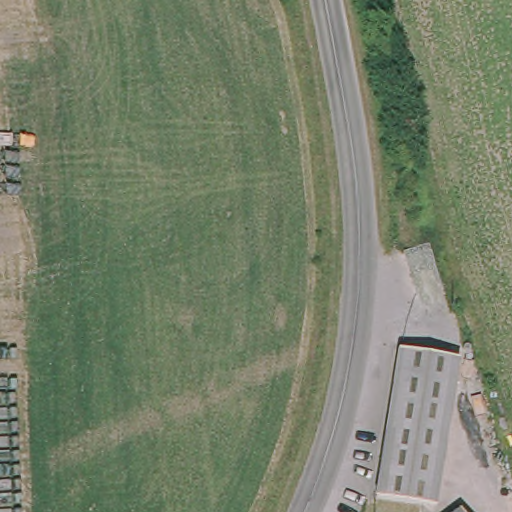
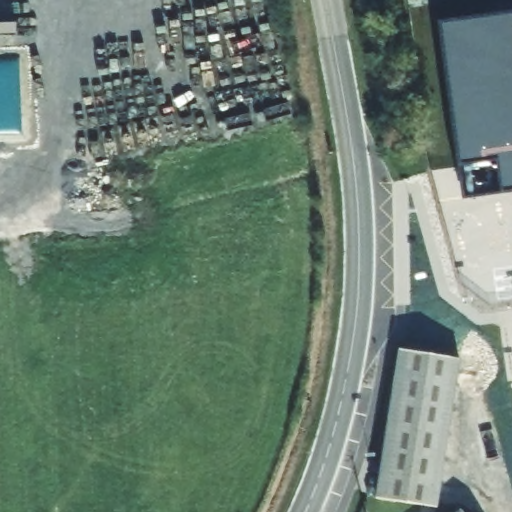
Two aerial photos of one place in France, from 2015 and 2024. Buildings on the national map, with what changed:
new [(438,22),(512,12),(512,192),(462,199),(438,22)]
unchanged [(422,268),(423,268),(430,266),(432,266),(437,288),(439,295),(432,297),(430,297),(424,298),(417,269),(422,268)]
unchanged [(446,350),(451,367),(452,371),(434,499),(369,495),(391,349),(392,344),(446,350)]
unchanged [(490,512),(454,512),(483,490),(490,512)]
new [(457,512),(460,510),(462,512),(457,512)]

